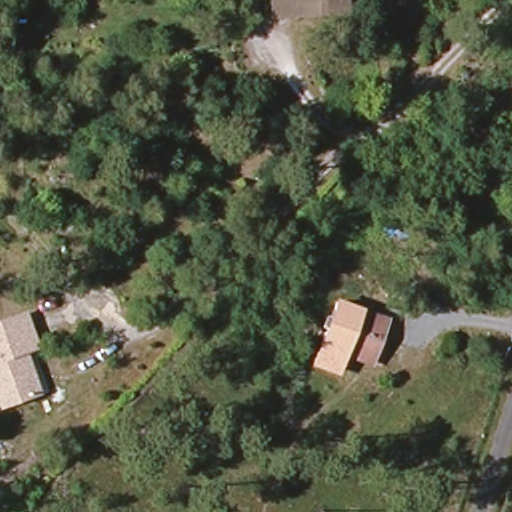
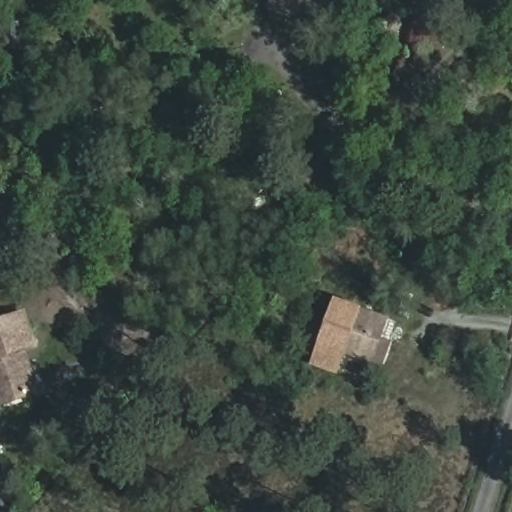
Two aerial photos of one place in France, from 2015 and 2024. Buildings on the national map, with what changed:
unchanged [(347,13),(269,18),(268,0),(346,0),(347,13)]
unchanged [(371,367),(336,356),(352,307),(387,320),(371,367)]
unchanged [(36,347),(24,351),(39,392),(0,406),(0,318),(24,310),(36,347)]

